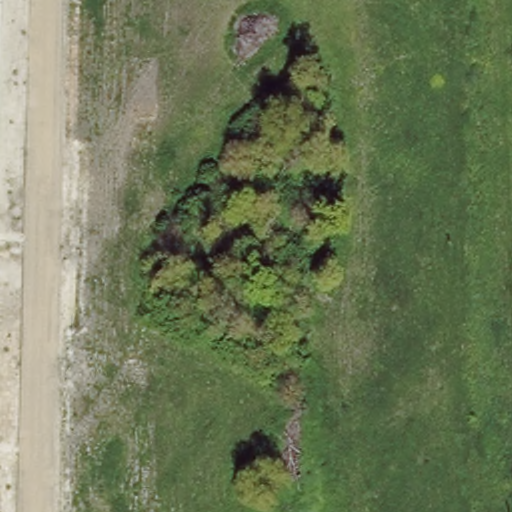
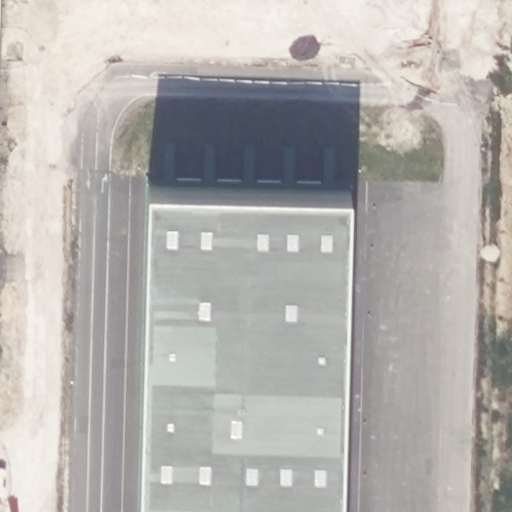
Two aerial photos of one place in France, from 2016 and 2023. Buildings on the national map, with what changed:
new [(350,182),(343,512),(142,512),(152,177),(350,182)]

